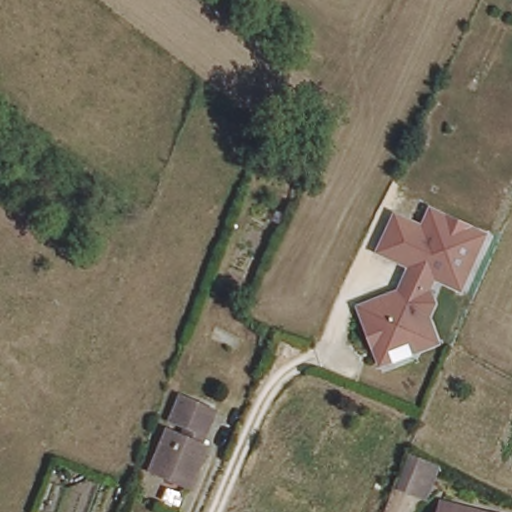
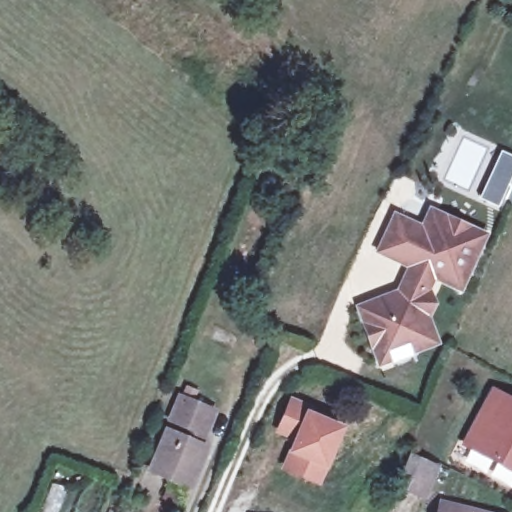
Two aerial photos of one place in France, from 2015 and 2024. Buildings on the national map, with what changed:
unchanged [(407,258),(377,243),(392,209),(420,222),(429,204),(480,228),(457,281),(430,269),(417,296),(432,333),(407,343),(408,346),(387,354),(382,343),(380,345),(370,340),(355,300),(395,286),(407,258)]
new [(512,402),(512,469),(467,446),(495,393),(512,402)]
unchanged [(213,410),(199,447),(209,448),(189,493),(147,468),(178,394),(213,410)]
new [(314,411),(312,416),(343,430),(319,483),(286,468),(299,439),(282,431),(295,402),(314,411)]
unchanged [(419,488),(407,483),(415,461),(427,465),(419,488)]
unchanged [(443,506),(467,512),(442,512),(443,506)]

